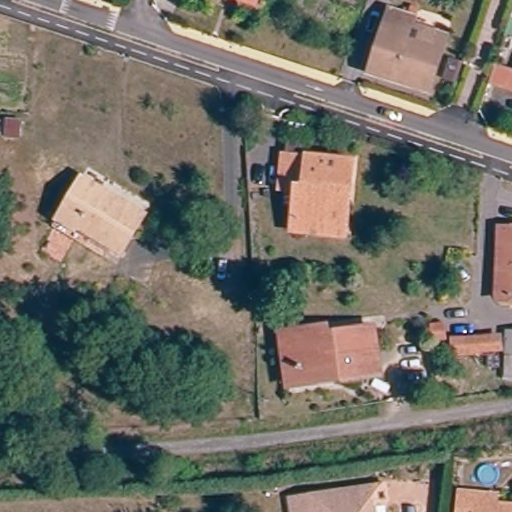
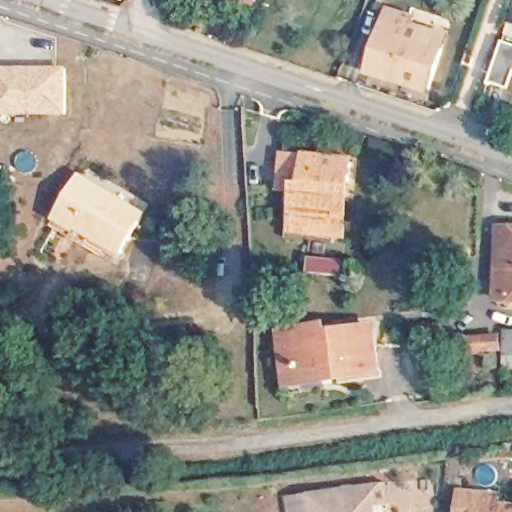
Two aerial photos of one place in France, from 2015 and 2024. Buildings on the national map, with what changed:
unchanged [(244,0),(256,0),(255,4),(244,0)]
unchanged [(365,76),(383,14),(408,23),(443,33),(438,53),(426,94),(365,76)]
new [(65,114),(0,115),(0,68),(66,68),(65,114)]
unchanged [(509,94),(491,88),(497,69),(512,74),(512,95),(509,94)]
unchanged [(23,121),(21,141),(4,139),(7,119),(23,121)]
unchanged [(309,232),(285,229),(291,189),(276,187),(280,155),(282,136),(306,140),(304,156),(348,163),(345,183),(337,235),(309,232)]
unchanged [(122,253),(61,216),(83,179),(145,215),(122,253)]
unchanged [(494,229),(512,230),(512,301),(508,301),(508,269),(494,269),(495,248),(493,248),(494,229)]
unchanged [(446,324),(447,343),(432,343),(432,325),(446,324)]
unchanged [(288,384),(282,332),(294,330),(325,328),(326,334),(372,329),(377,376),(342,379),(299,384),(288,384)]
unchanged [(505,377),(509,330),(512,331),(512,377),(505,377)]
unchanged [(454,363),(453,349),(453,338),(476,337),(501,336),(501,349),(476,349),(472,349),(472,362),(454,363)]
unchanged [(453,491),(468,492),(488,494),(487,506),(512,508),(512,512),(451,512),(453,491)]
unchanged [(292,503),(374,492),(376,511),(368,512),(294,512),(292,503)]

